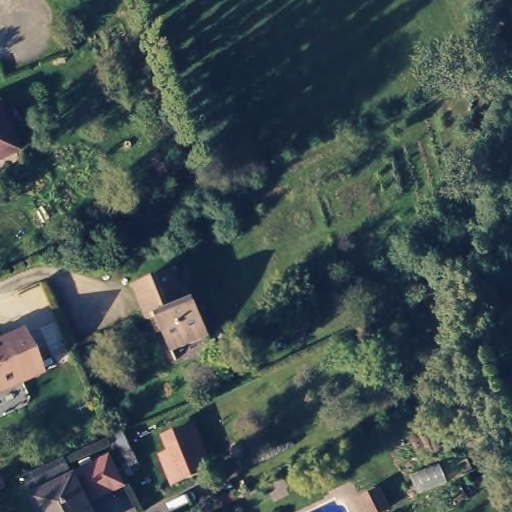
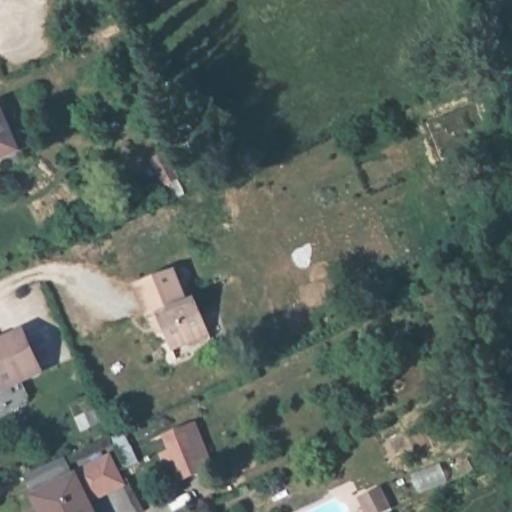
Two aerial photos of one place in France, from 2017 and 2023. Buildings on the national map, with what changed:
unchanged [(20,136),(0,144),(0,92),(1,92),(20,136)]
unchanged [(173,256),(186,288),(195,285),(209,321),(172,336),(157,302),(149,306),(135,271),(173,256)]
unchanged [(27,326),(46,367),(25,377),(0,388),(0,332),(2,337),(27,326)]
unchanged [(211,467),(177,482),(159,435),(193,420),(211,467)]
unchanged [(69,462),(93,512),(43,512),(28,481),(69,462)]
unchanged [(370,512),(366,503),(361,494),(370,490),(379,486),(388,503),(371,512),(370,512)]

